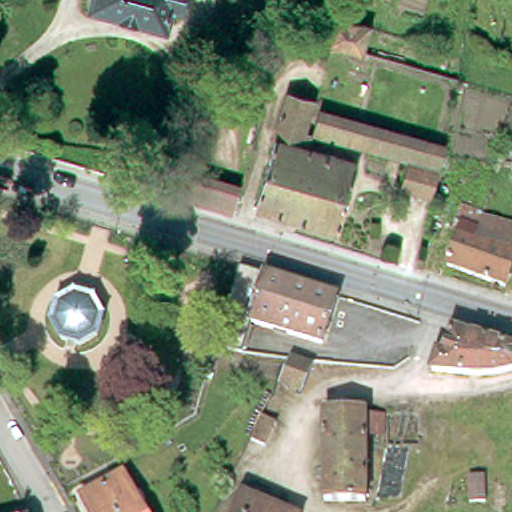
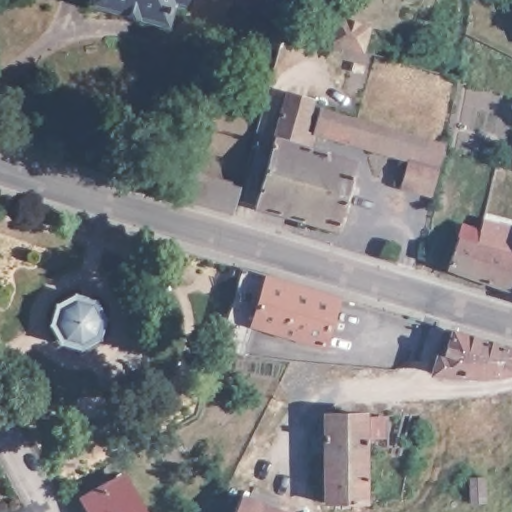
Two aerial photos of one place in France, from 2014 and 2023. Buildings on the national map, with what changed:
unchanged [(92,0),(171,0),(167,18),(92,0)]
unchanged [(340,24),(352,27),(373,33),(367,59),(333,49),(340,24)]
unchanged [(257,208),(295,68),(320,74),(300,148),(310,151),(290,217),(257,208)]
unchanged [(401,190),(410,163),(315,134),(320,117),(442,155),(431,197),(401,190)]
unchanged [(358,165),(339,231),(290,217),(310,151),(358,165)]
unchanged [(181,197),(189,175),(250,192),(244,215),(181,197)]
unchanged [(463,224),(481,228),(483,220),(512,229),(512,269),(506,288),(450,272),(460,235),(463,224)]
unchanged [(287,283),(288,278),(335,293),(321,339),(250,317),(241,348),(213,341),(235,268),(287,283)]
unchanged [(63,341),(54,326),(60,306),(78,296),(95,300),(105,319),(101,335),(83,346),(63,341)]
unchanged [(483,376),(433,372),(438,352),(445,354),(450,330),(512,349),(512,372),(483,376)]
unchanged [(280,382),(287,359),(307,365),(298,389),(280,382)]
unchanged [(332,410),(371,412),(372,501),(332,501),(332,410)]
unchanged [(259,418),(272,424),(262,443),(261,445),(248,439),(259,418)]
unchanged [(122,474),(143,512),(92,512),(83,496),(122,474)]
unchanged [(465,476),(480,474),(482,501),(465,501),(465,476)]
unchanged [(275,512),(232,512),(237,498),(275,512)]

